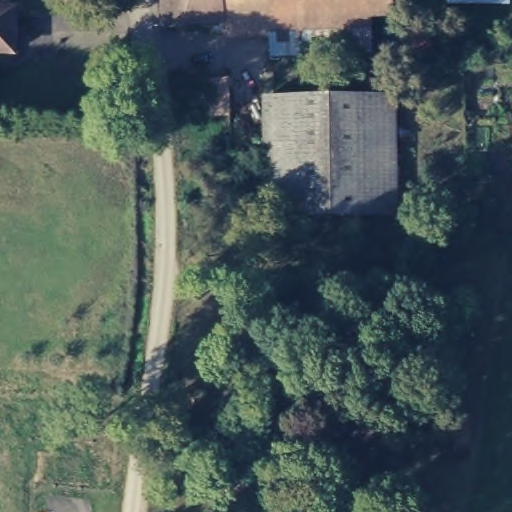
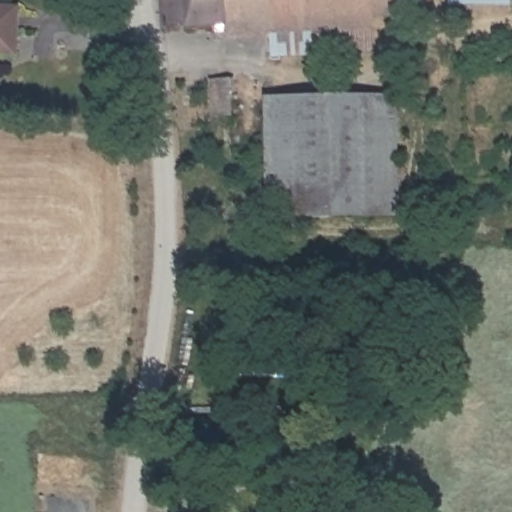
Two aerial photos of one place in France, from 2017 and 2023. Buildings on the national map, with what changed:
unchanged [(222,28),(210,28),(210,20),(165,22),(163,0),(416,0),(416,6),(390,8),(375,9),(367,10),(267,16),(264,17),(264,30),(222,32),(222,28)]
unchanged [(445,5),(446,0),(512,0),(512,6),(445,5)]
unchanged [(10,48),(0,47),(0,8),(15,9),(10,48)]
unchanged [(367,10),(370,43),(269,50),(267,16),(367,10)]
unchanged [(229,77),(229,83),(225,85),(225,89),(224,89),(223,115),(205,113),(209,75),(229,77)]
unchanged [(397,91),(400,212),(270,214),(267,97),(397,91)]

